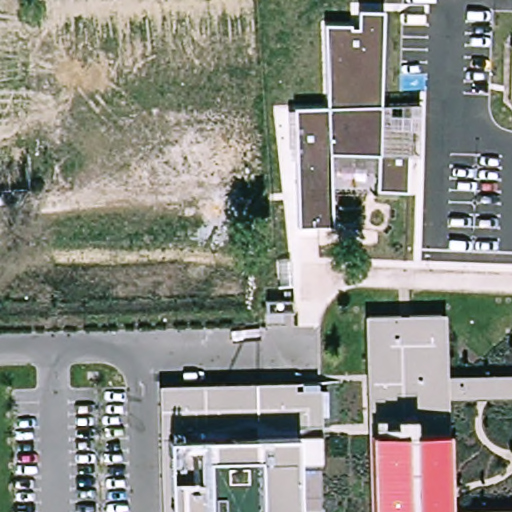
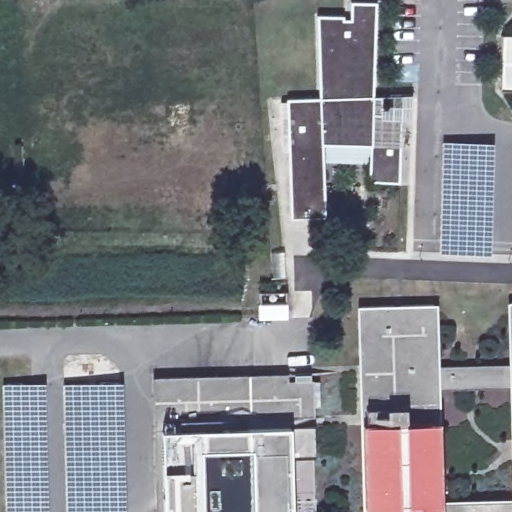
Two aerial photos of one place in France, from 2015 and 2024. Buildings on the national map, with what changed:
unchanged [(410,97),(408,145),(398,145),(398,183),(370,182),(371,144),(322,144),(323,217),(293,218),(288,101),(320,99),(319,17),(342,18),(342,22),(352,22),(353,4),(375,3),(370,97),(410,97)]
unchanged [(506,37),(512,37),(512,93),(503,92),(506,37)]
new [(495,144),(491,254),(440,253),(442,142),(495,144)]
unchanged [(365,317),(437,315),(438,349),(438,378),(512,377),(512,392),(439,393),(441,512),(369,512),(365,346),(365,317)]
unchanged [(163,376),(291,373),(291,380),(317,379),(318,457),(293,458),(294,512),(166,512),(165,428),(163,376)]
new [(48,512),(5,512),(2,384),(45,382),(48,512)]
new [(126,512),(67,512),(64,385),(123,383),(126,512)]
unchanged [(512,512),(461,512),(512,511),(512,512)]

